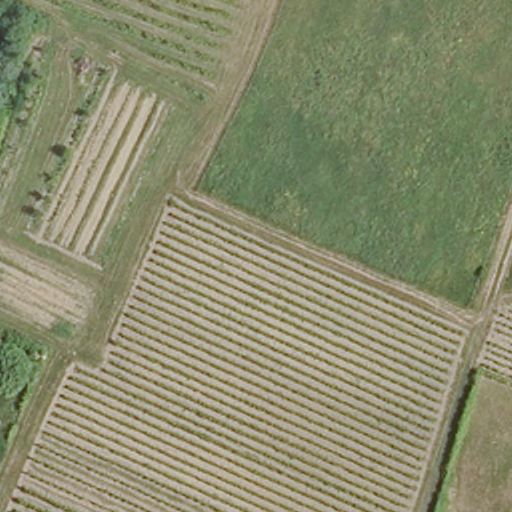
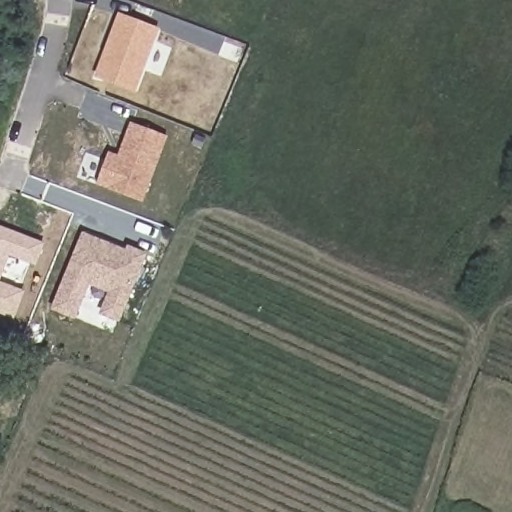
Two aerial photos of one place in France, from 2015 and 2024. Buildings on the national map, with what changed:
new [(118,14),(160,27),(136,93),(94,79),(118,14)]
new [(108,152),(118,157),(131,122),(168,137),(143,203),(96,186),(108,152)]
new [(36,267),(9,256),(0,282),(25,291),(13,320),(0,314),(0,225),(45,242),(36,267)]
new [(82,232),(146,258),(121,321),(100,312),(107,295),(90,287),(75,320),(50,311),(82,232)]
demolished [(0,341),(0,326),(7,328),(0,341)]

